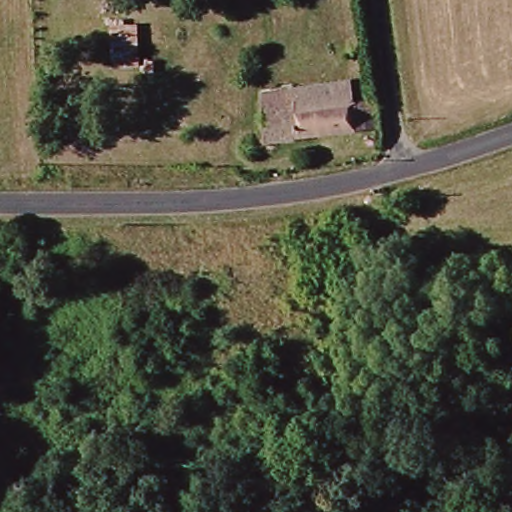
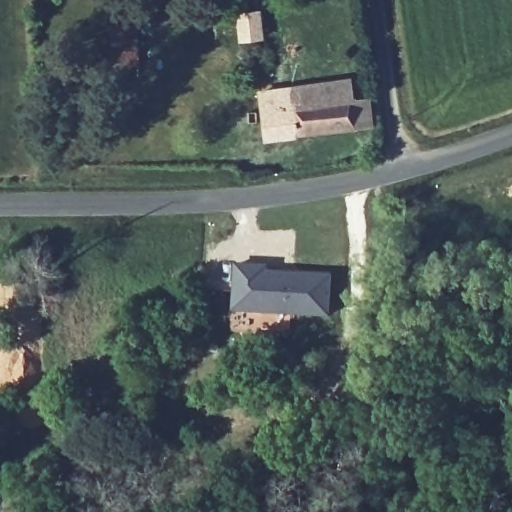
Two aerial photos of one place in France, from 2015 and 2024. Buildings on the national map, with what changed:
unchanged [(378,120),(266,133),(261,87),(351,76),(355,92),(375,90),(378,120)]
new [(232,262),(268,263),(268,269),(333,273),(330,318),(231,313),(232,262)]

